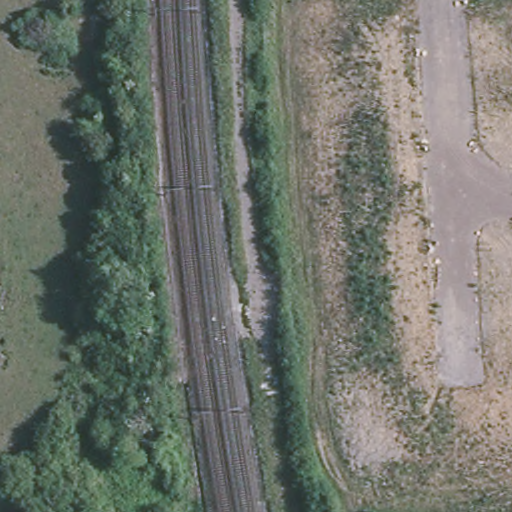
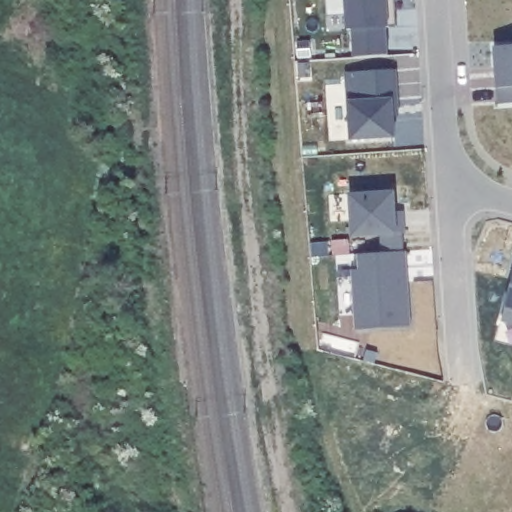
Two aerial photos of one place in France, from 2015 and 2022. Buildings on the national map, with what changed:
new [(352,27),(347,29),(345,0),(395,0),(397,25),(390,26),(387,26),(388,55),(355,57),(352,27)]
new [(512,44),(512,102),(498,103),(497,86),(496,66),(495,45),(512,44)]
new [(394,115),(395,135),(351,139),(347,71),(395,69),(397,99),(398,115),(394,115)]
new [(348,195),(395,191),(395,209),(403,210),(405,234),(397,234),(352,237),(348,195)]
new [(352,268),(358,268),(357,255),(405,250),(411,325),(356,330),(352,268)]
new [(512,323),(502,320),(512,282),(512,323)]

